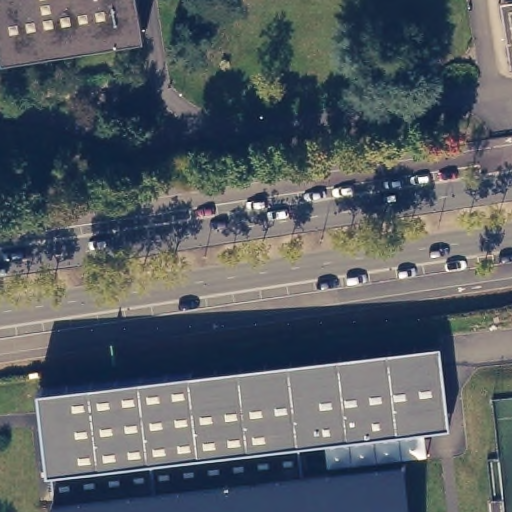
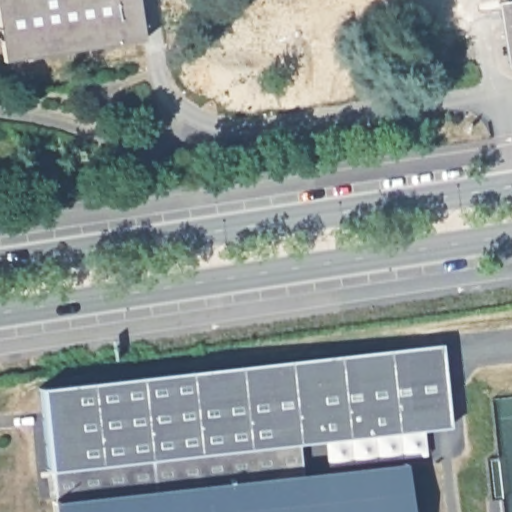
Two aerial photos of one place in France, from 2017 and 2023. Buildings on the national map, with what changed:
unchanged [(0,30),(0,0),(140,0),(145,35),(4,56),(0,30)]
unchanged [(503,0),(512,0),(512,61),(503,0)]
unchanged [(440,342),(449,420),(440,421),(434,366),(195,392),(192,370),(440,342)]
unchanged [(54,469),(49,470),(40,387),(192,370),(195,392),(434,366),(440,421),(425,422),(324,434),(299,436),(303,469),(57,500),(54,469)]
unchanged [(425,422),(427,449),(327,460),(324,434),(425,422)]
unchanged [(303,469),(404,457),(411,512),(54,512),(53,501),(57,500),(303,469)]

